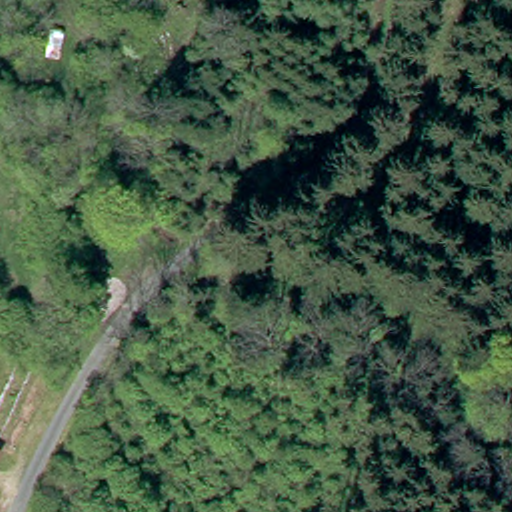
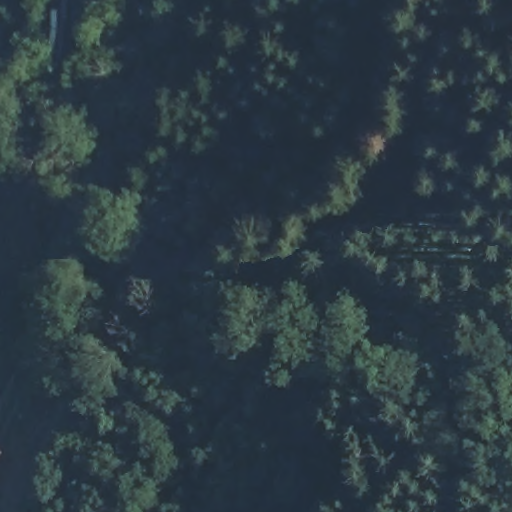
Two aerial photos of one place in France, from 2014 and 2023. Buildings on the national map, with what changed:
unchanged [(3,453),(0,461),(0,452),(3,453)]

